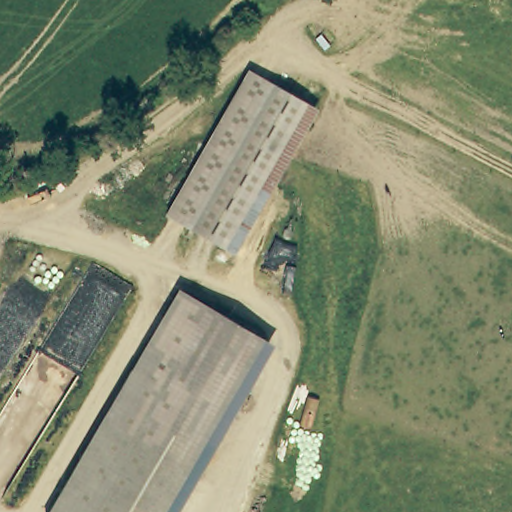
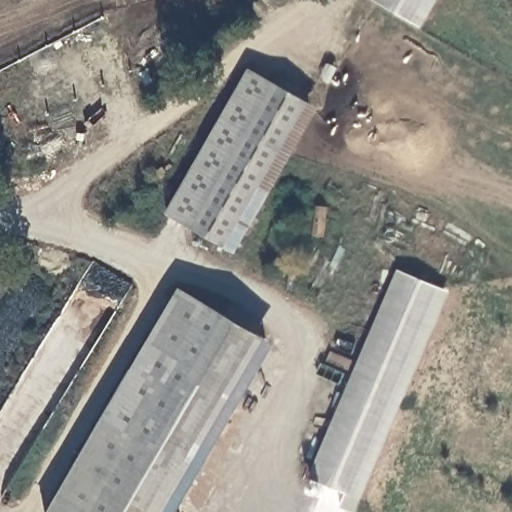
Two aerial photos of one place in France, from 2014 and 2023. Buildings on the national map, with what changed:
new [(421,27),(374,0),(437,0),(421,27)]
unchanged [(167,215),(249,70),(294,96),(306,103),(290,132),(224,248),(167,215)]
new [(309,478),(397,270),(450,291),(357,512),(350,512),(340,508),(346,494),(309,478)]
unchanged [(276,345),(180,512),(51,512),(180,289),(276,345)]
new [(314,482),(319,483),(322,487),(322,492),(318,495),(313,495),(310,490),(310,486),(314,482)]

